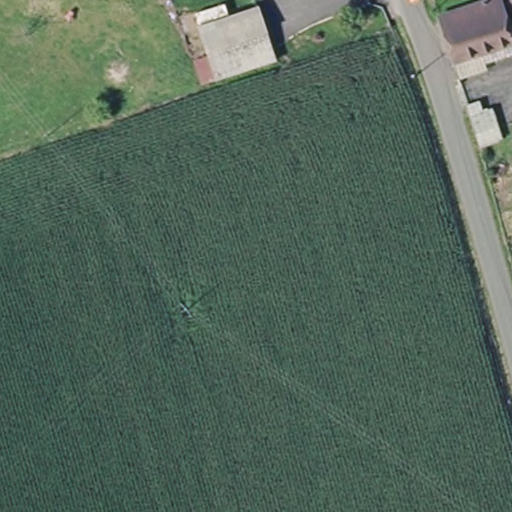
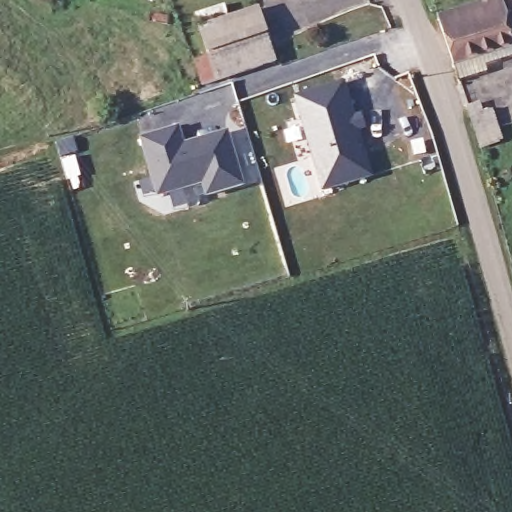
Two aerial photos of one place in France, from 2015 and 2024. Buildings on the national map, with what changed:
unchanged [(491,0),(512,0),(512,46),(456,64),(439,17),(491,0)]
unchanged [(202,79),(194,60),(209,52),(197,29),(259,6),(266,28),(273,51),(202,79)]
new [(356,119),(363,117),(366,125),(359,127),(373,174),(325,189),(298,96),(345,82),(356,119)]
unchanged [(479,95),(483,109),(491,105),(496,118),(471,127),(461,99),(479,95)]
new [(245,186),(205,197),(202,185),(158,196),(140,137),(180,126),(184,143),(229,131),(245,186)]

